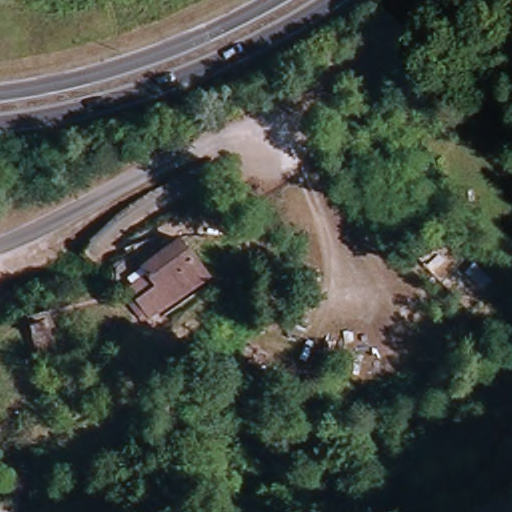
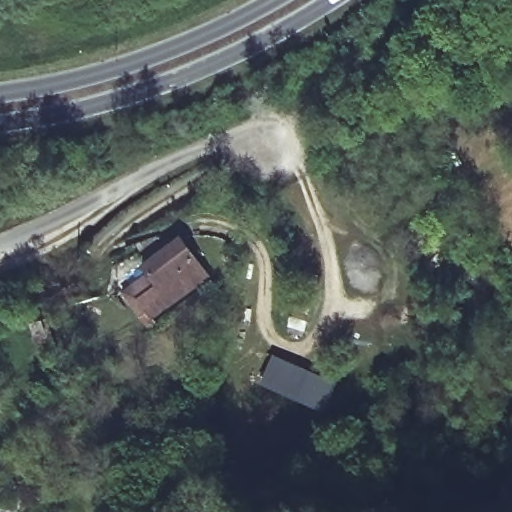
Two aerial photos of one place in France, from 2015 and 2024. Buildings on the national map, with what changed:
unchanged [(145,303),(135,285),(165,263),(161,255),(194,231),(213,261),(220,272),(161,310),(153,315),(145,303)]
unchanged [(0,301),(0,291),(3,299),(0,301)]
unchanged [(66,347),(51,351),(40,320),(46,319),(57,315),(66,347)]
new [(260,384),(273,355),(337,382),(324,411),(260,384)]

